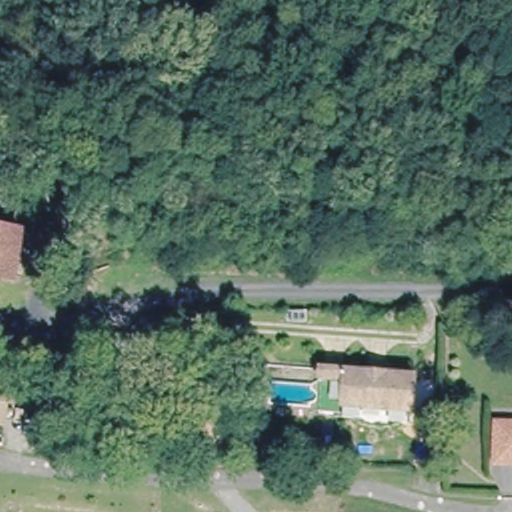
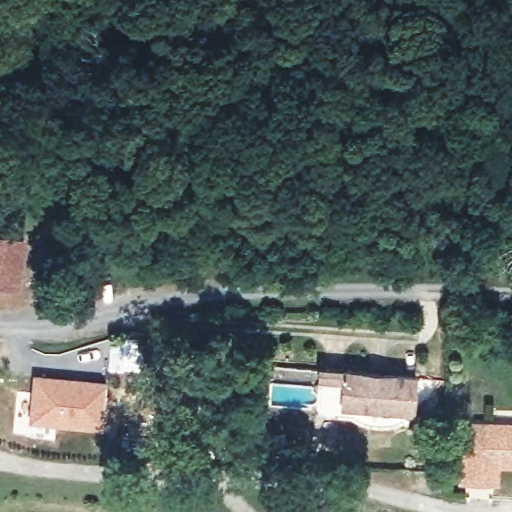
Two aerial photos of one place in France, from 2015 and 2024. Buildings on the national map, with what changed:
unchanged [(0,278),(0,232),(23,235),(16,281),(0,278)]
unchanged [(345,401),(343,401),(345,378),(320,376),(321,365),(346,367),(416,373),(413,406),(345,401)]
new [(32,373),(107,381),(101,430),(28,420),(32,373)]
unchanged [(0,426),(0,400),(5,400),(4,426),(0,426)]
new [(501,482),(458,482),(459,421),(512,422),(512,466),(499,466),(501,482)]

